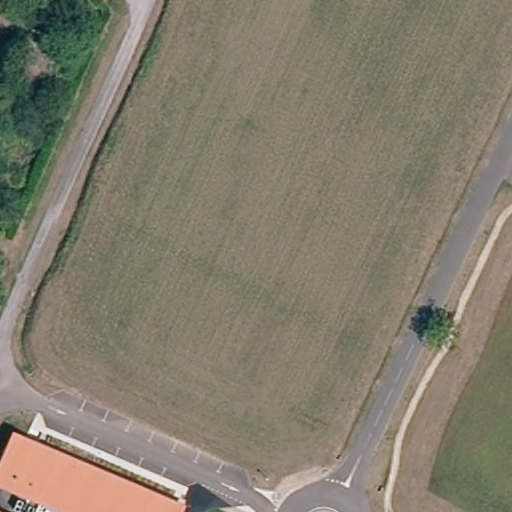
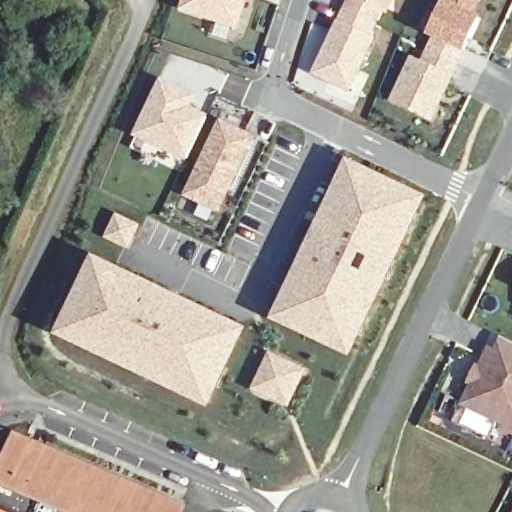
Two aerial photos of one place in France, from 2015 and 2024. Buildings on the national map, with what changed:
new [(181,13),(186,0),(246,0),(235,31),(181,13)]
new [(348,0),(395,0),(388,15),(382,12),(376,26),(343,10),(348,0)]
new [(440,36),(432,34),(447,0),(478,0),(470,18),(477,19),(455,64),(431,53),(440,36)]
new [(337,21),(338,21),(343,10),(376,26),(372,38),(376,40),(350,94),(312,75),(337,21)]
new [(392,103),(412,56),(421,61),(427,51),(431,53),(455,64),(459,66),(434,122),(392,103)]
new [(158,77),(195,93),(190,106),(207,115),(185,161),(130,136),(158,77)]
new [(184,196),(220,120),(256,138),(219,212),(184,196)]
new [(347,159),(428,199),(351,358),(273,320),(347,159)]
new [(114,212),(139,224),(127,250),(102,238),(114,212)]
new [(55,336),(94,256),(249,329),(210,411),(55,336)]
new [(471,385),(469,384),(477,364),(480,365),(489,347),(495,350),(501,338),(512,344),(512,430),(461,406),(471,385)]
new [(253,391),(270,354),(307,371),(289,409),(253,391)]
unchanged [(182,512),(0,512),(0,483),(5,485),(8,477),(23,437),(47,446),(46,447),(58,452),(177,496),(186,500),(182,512)]

